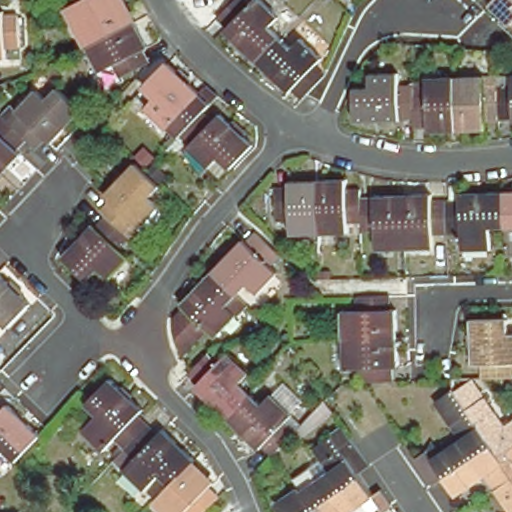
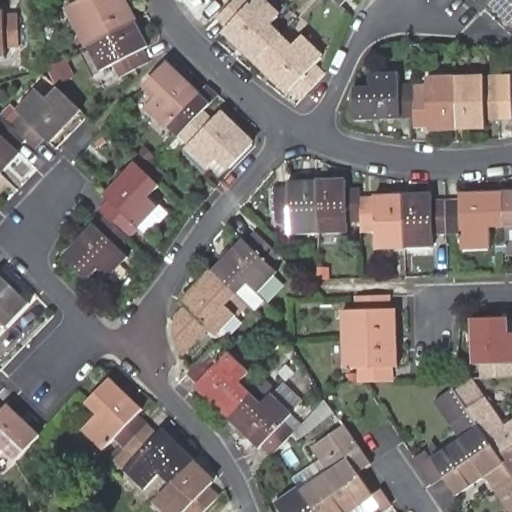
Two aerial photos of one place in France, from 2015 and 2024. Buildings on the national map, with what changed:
unchanged [(126,0),(151,44),(144,49),(151,62),(136,70),(124,76),(117,64),(102,72),(75,20),(89,12),(82,1),(84,0),(126,0)]
unchanged [(292,88),(289,92),(225,29),(228,25),(217,15),(232,0),(246,0),(250,3),(253,0),(264,0),(278,14),(268,25),(291,47),(301,37),(322,58),(315,66),(326,76),(303,99),(292,88)]
unchanged [(488,6),(495,0),(512,0),(512,28),(488,6)]
unchanged [(6,16),(19,15),(21,47),(6,47),(6,59),(0,59),(0,11),(5,10),(6,16)]
unchanged [(169,63),(200,92),(197,95),(207,105),(202,111),(212,121),(221,112),(253,142),(222,176),(191,145),(192,143),(181,133),(187,127),(177,117),(169,125),(147,105),(157,96),(147,87),(169,63)]
unchanged [(486,121),(486,132),(429,134),(428,130),(416,130),(415,116),(400,117),(400,123),(356,125),(354,93),(370,92),(370,78),(398,77),(399,86),(414,86),(415,99),(427,99),(427,80),(485,77),(485,90),(499,89),(498,78),(512,78),(512,120),(486,121)]
unchanged [(13,127),(22,116),(17,111),(36,91),(46,99),(58,88),(82,110),(51,143),(45,137),(35,148),(25,139),(16,148),(21,152),(0,174),(0,119),(2,117),(13,127)]
unchanged [(119,248),(128,256),(107,277),(97,268),(87,279),(63,256),(95,223),(97,225),(106,216),(100,210),(110,200),(105,195),(136,162),(159,184),(147,196),(159,205),(165,212),(144,234),(137,227),(129,237),(119,248)]
unchanged [(491,225),(492,247),(461,248),(460,231),(433,232),(433,249),(377,251),(376,229),(361,230),(361,221),(347,221),(348,233),(291,235),(291,218),(275,218),(275,188),(290,188),(290,180),(346,178),(347,189),(360,189),(360,199),(375,198),(374,194),(432,192),(432,201),(459,200),(458,191),(512,189),(512,224),(491,225)]
unchanged [(268,268),(277,274),(257,296),(247,287),(226,308),(236,318),(216,341),(207,334),(181,362),(180,358),(177,348),(175,340),(174,325),(186,313),(182,309),(242,242),(247,246),(255,237),(262,243),(277,258),(268,268)]
unchanged [(4,330),(0,326),(0,281),(26,307),(4,330)]
unchanged [(360,384),(359,370),(342,370),(342,313),(358,313),(358,300),(375,299),(388,299),(388,312),(395,312),(396,370),(390,370),(390,383),(360,384)]
unchanged [(481,361),(472,362),(470,317),(507,316),(507,331),(512,331),(512,375),(482,376),(481,361)]
unchanged [(188,372),(190,369),(209,350),(219,359),(227,351),(248,370),(237,381),(262,403),(272,392),(292,411),(285,419),(296,430),(279,448),(273,454),(262,443),(259,446),(194,386),(197,382),(187,373),(188,372)]
unchanged [(120,474),(131,462),(110,442),(98,454),(77,432),(91,417),(82,408),(105,382),(137,413),(131,420),(152,440),(158,433),(191,464),(189,467),(209,487),(205,491),(214,500),(202,512),(158,512),(152,506),(167,489),(156,478),(140,494),(120,474)]
unchanged [(483,476),(457,494),(447,480),(443,474),(431,482),(413,457),(426,449),(432,456),(458,437),(433,399),(452,387),(467,407),(484,395),(505,424),(512,419),(512,512),(508,512),(483,476)]
unchanged [(35,439),(11,464),(0,454),(0,412),(3,408),(35,439)]
unchanged [(276,505),(298,489),(302,493),(329,474),(313,451),(330,439),(346,424),(373,466),(369,469),(357,477),(372,499),(376,498),(379,496),(389,510),(387,512),(378,512),(377,511),(376,512),(280,512),(276,505)]

